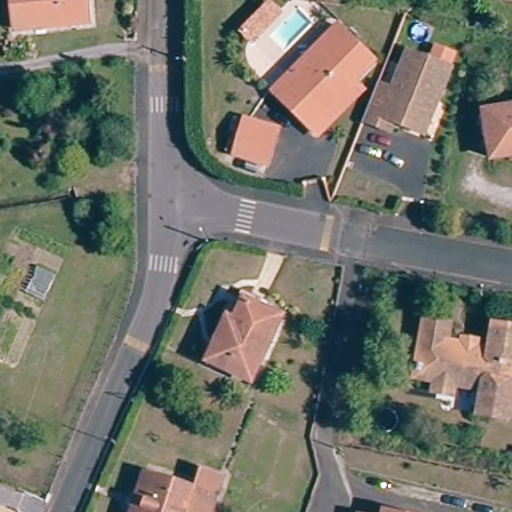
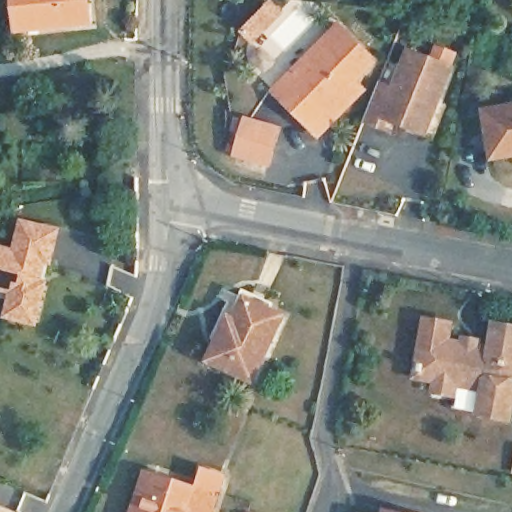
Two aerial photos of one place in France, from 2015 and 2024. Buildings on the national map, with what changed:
unchanged [(22,37),(15,0),(84,0),(84,3),(88,25),(78,27),(22,37)]
unchanged [(262,6),(270,14),(246,42),(237,35),(262,6)]
unchanged [(308,137),(300,130),(265,100),(328,26),(363,56),(346,75),(355,82),(308,137)]
unchanged [(376,117),(362,111),(376,75),(390,80),(405,42),(418,47),(449,60),(435,95),(422,124),(405,117),(392,112),(388,121),(376,117)]
unchanged [(481,112),(512,107),(512,155),(489,159),(481,112)]
unchanged [(276,121),(264,160),(228,150),(240,111),(276,121)]
new [(2,317),(9,293),(0,291),(0,246),(13,250),(21,220),(63,230),(53,267),(48,266),(44,281),(49,283),(37,328),(2,317)]
unchanged [(214,368),(222,349),(213,345),(225,315),(235,319),(244,295),(273,307),(270,315),(282,320),(255,385),(214,368)]
unchanged [(440,378),(418,375),(428,320),(452,324),(448,341),(464,345),(465,335),(479,338),(477,347),(492,350),(497,325),(512,328),(512,410),(510,418),(481,412),(485,387),(460,382),(458,393),(438,390),(440,378)]
unchanged [(174,512),(128,512),(143,476),(186,495),(195,472),(213,480),(200,512),(192,512),(176,505),(174,512)]
unchanged [(390,511),(394,512),(390,512),(390,511)]

